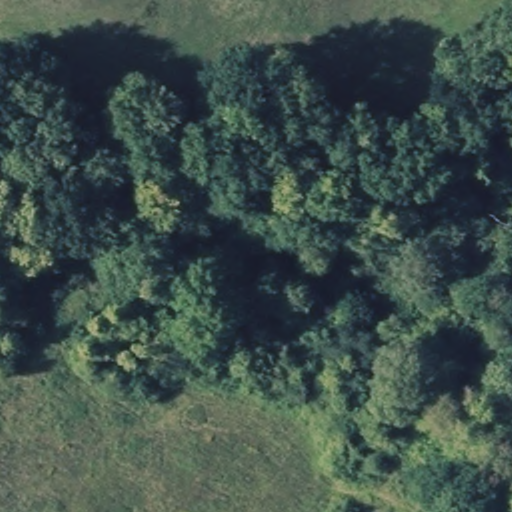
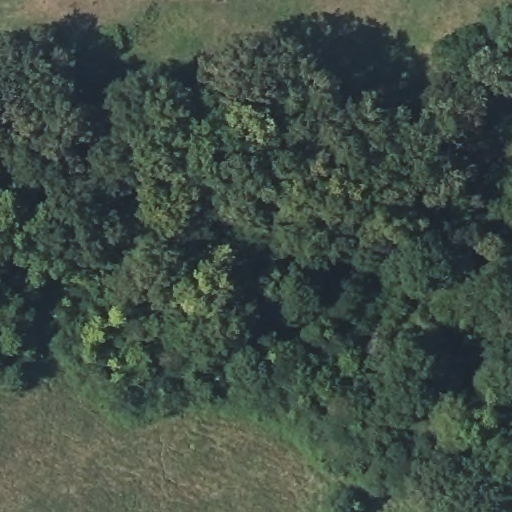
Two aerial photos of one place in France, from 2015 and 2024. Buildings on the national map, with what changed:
[]

